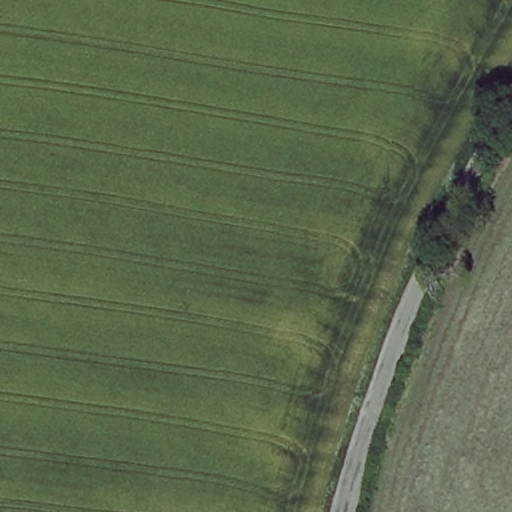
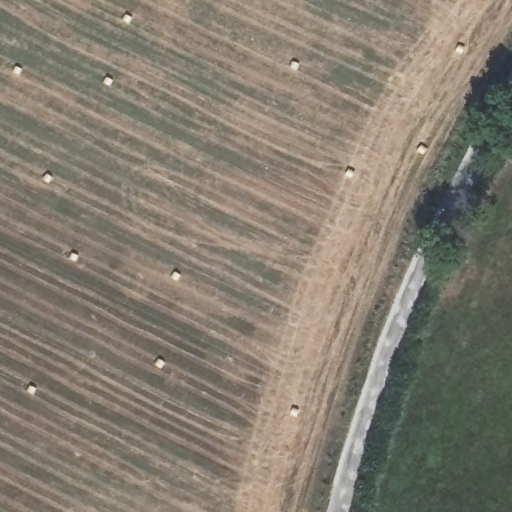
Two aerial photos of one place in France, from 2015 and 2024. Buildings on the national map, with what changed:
unchanged [(330,504),(316,503),(320,475),(337,480),(330,504)]

